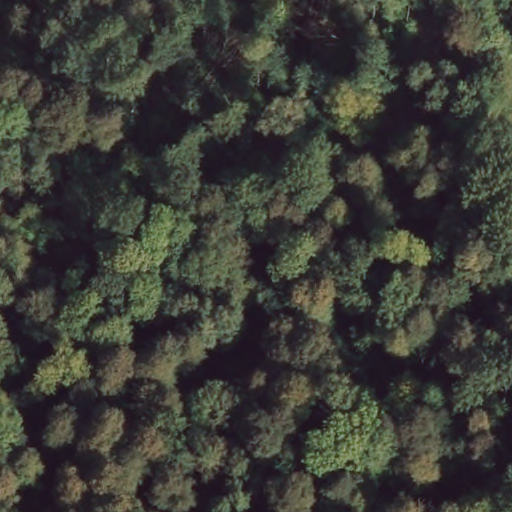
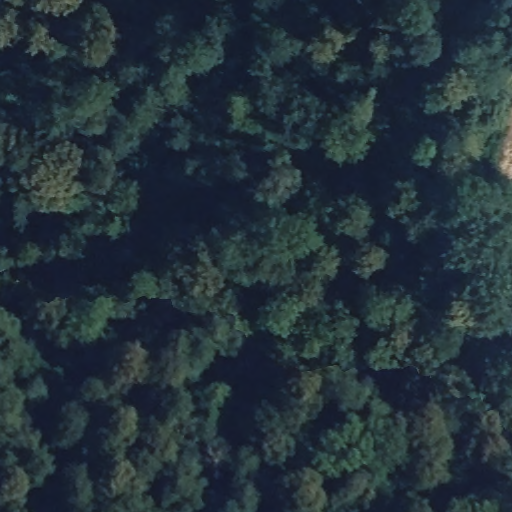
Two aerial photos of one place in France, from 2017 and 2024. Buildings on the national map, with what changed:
unchanged [(512,218),(512,228),(509,219),(512,218)]

